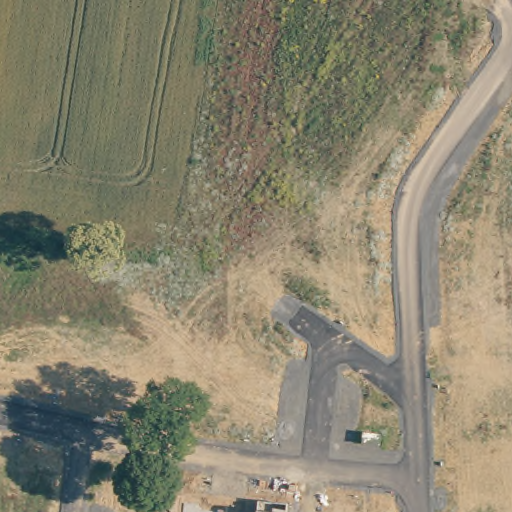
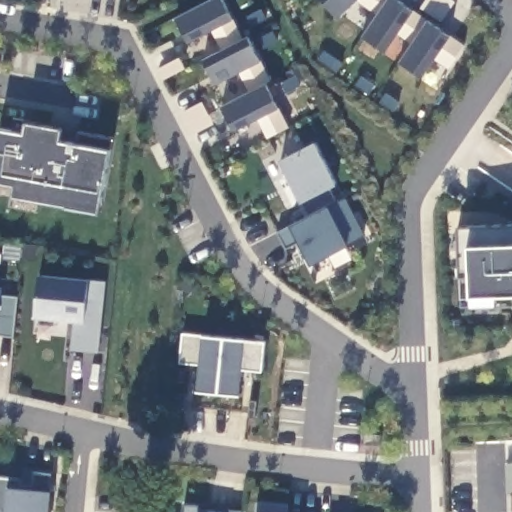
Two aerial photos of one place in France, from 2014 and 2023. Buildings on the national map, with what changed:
new [(270,139),(260,120),(236,132),(224,107),(252,92),(242,73),(218,85),(205,61),(225,50),(215,31),(191,44),(178,19),(214,0),(224,0),(245,40),(250,38),(272,82),(268,85),(291,129),(270,139)]
new [(467,46),(452,69),(437,60),(425,78),(402,62),(415,44),(401,34),(388,52),(365,37),(380,15),(360,1),(340,19),(323,0),(399,0),(467,46)]
new [(1,127),(12,129),(14,116),(27,119),(27,120),(51,125),(52,122),(67,125),(64,140),(77,142),(80,130),(113,136),(101,214),(64,207),(65,205),(39,200),(37,210),(11,205),(12,196),(12,194),(0,192),(0,133),(1,127)]
new [(349,245),(312,265),(301,243),(287,247),(278,231),(292,226),(310,217),(302,202),(281,160),(316,141),(337,184),(330,188),(338,201),(347,198),(365,235),(349,245)]
new [(472,295),(471,275),(460,275),(459,225),(512,223),(512,304),(472,305),(472,295)]
new [(72,348),(75,320),(36,317),(40,273),(90,278),(107,280),(99,352),(72,348)]
unchanged [(0,334),(0,286),(2,286),(1,294),(19,296),(14,335),(0,334)]
new [(263,370),(244,368),(241,394),(199,390),(201,365),(181,362),(183,333),(203,335),(266,341),(263,370)]
unchanged [(52,490),(50,512),(0,512),(0,475),(24,478),(25,466),(52,468),(52,473),(52,490)]
new [(290,512),(256,512),(257,511),(258,500),(290,504),(290,512)]
unchanged [(199,511),(213,512),(183,512),(184,503),(199,505),(199,511)]
unchanged [(242,510),(242,512),(227,512),(227,508),(242,510)]

